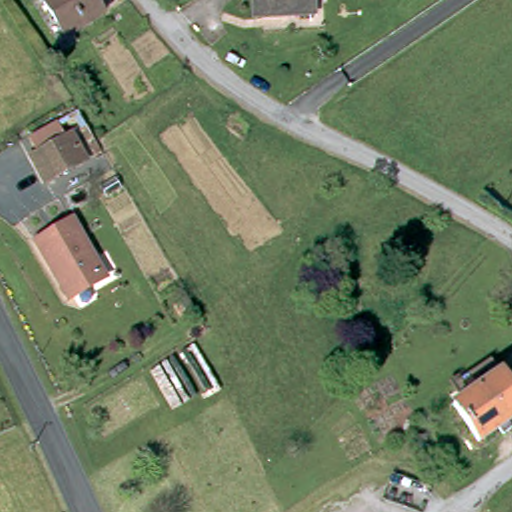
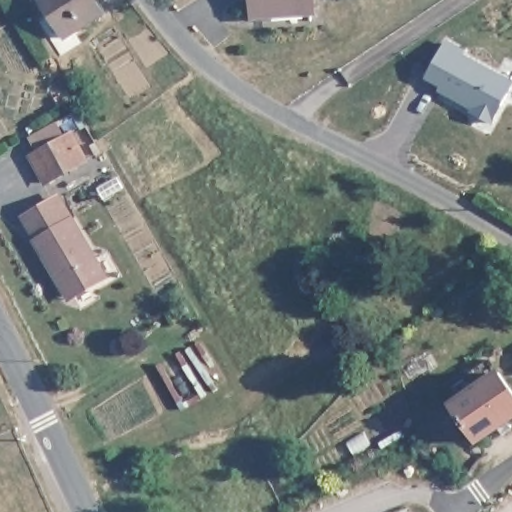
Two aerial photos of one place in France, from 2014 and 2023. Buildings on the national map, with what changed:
unchanged [(46,2),(49,0),(95,0),(100,7),(103,5),(110,17),(72,42),(46,2)]
unchanged [(253,0),(315,0),(316,15),(253,17),(253,0)]
new [(512,79),(512,86),(493,129),(423,79),(442,40),(512,79)]
unchanged [(31,160),(71,138),(85,163),(46,185),(31,160)]
unchanged [(55,277),(36,244),(72,223),(106,281),(75,299),(70,302),(55,277)]
unchanged [(497,437),(478,450),(452,414),(455,412),(449,403),(455,398),(451,392),(488,368),(512,402),(512,427),(504,432),(511,440),(503,446),(497,437)]

